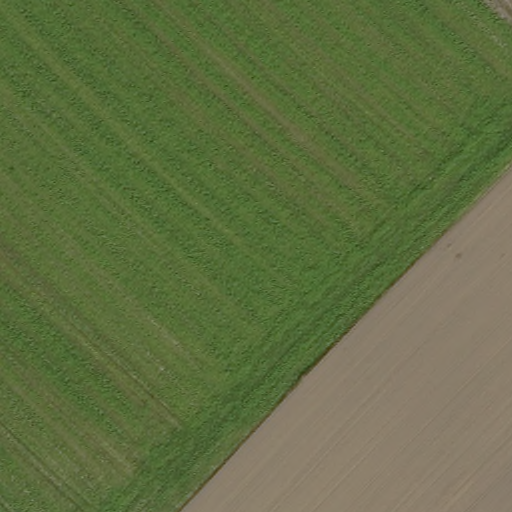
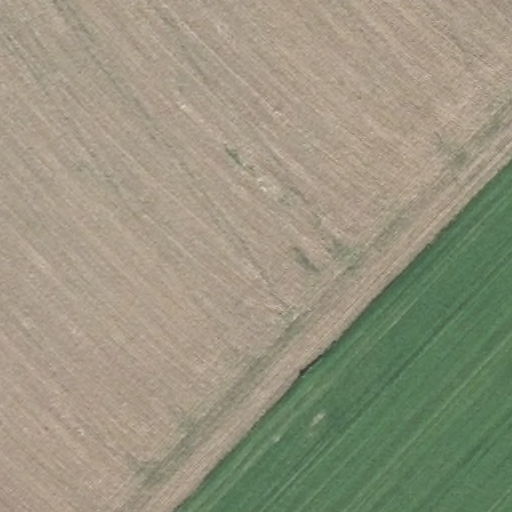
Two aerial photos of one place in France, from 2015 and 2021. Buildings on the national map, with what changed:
[]

